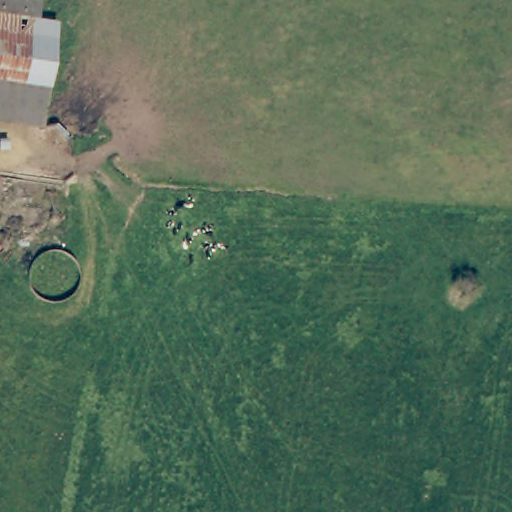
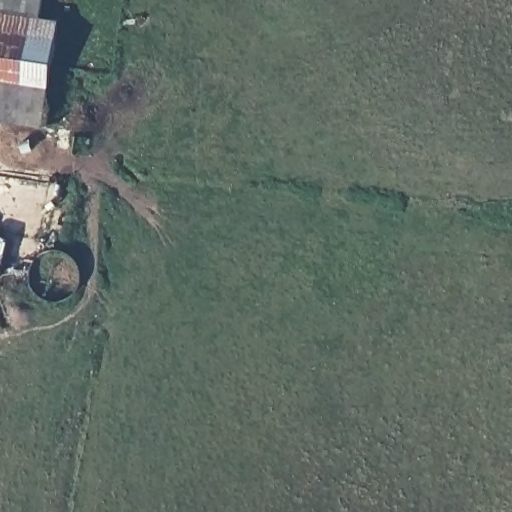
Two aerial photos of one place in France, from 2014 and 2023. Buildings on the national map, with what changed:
unchanged [(55,25),(41,128),(0,122),(0,0),(41,0),(39,23),(55,25)]

